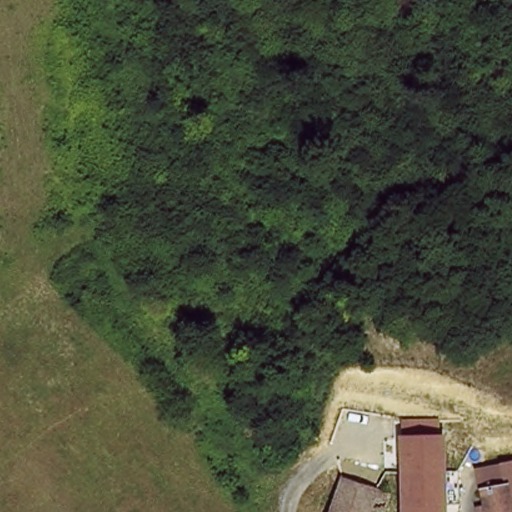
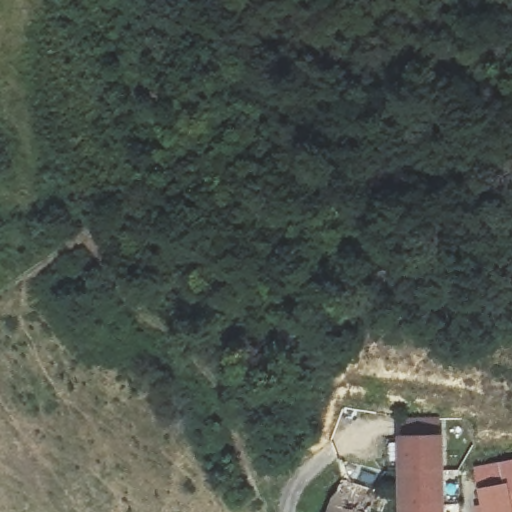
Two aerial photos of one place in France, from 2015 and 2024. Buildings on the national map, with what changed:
unchanged [(395,438),(436,439),(435,432),(456,433),(457,439),(470,437),(472,475),(440,477),(442,512),(394,512),(395,496),(395,438)]
unchanged [(512,474),(512,512),(492,512),(491,476),(512,474)]
unchanged [(383,494),(376,512),(329,512),(342,477),(383,494)]

